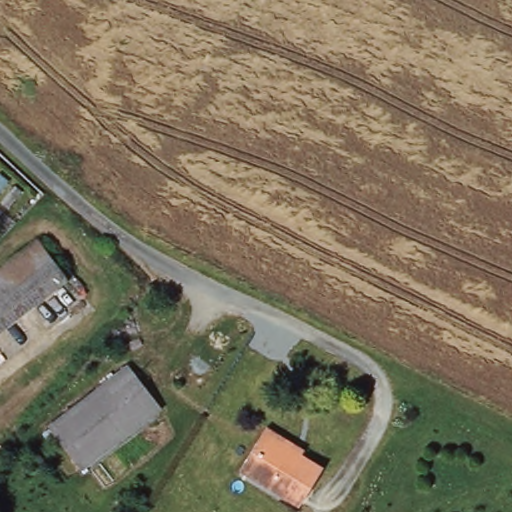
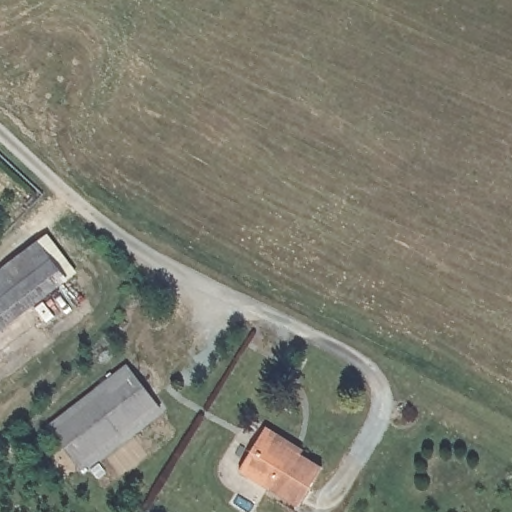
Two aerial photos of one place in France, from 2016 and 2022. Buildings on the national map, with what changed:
unchanged [(0,353),(0,287),(44,248),(77,286),(0,353)]
unchanged [(164,402),(86,470),(52,431),(129,362),(164,402)]
unchanged [(327,464),(303,504),(241,469),(267,428),(327,464)]

